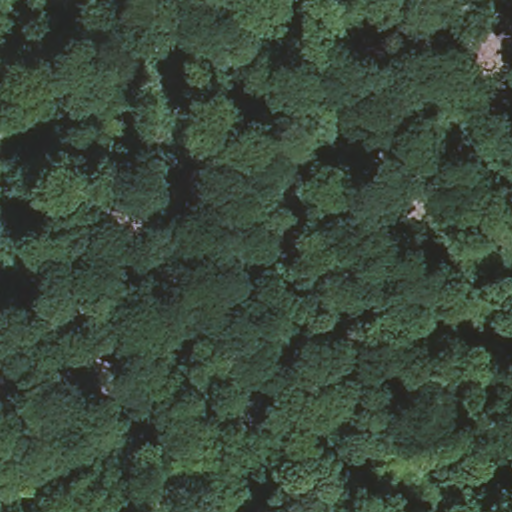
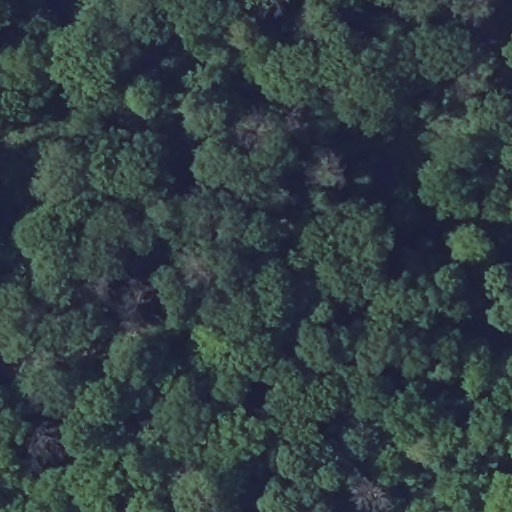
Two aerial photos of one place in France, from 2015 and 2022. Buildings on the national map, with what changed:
[]

